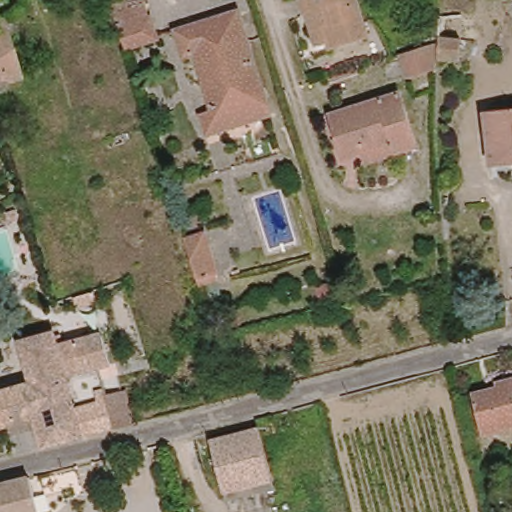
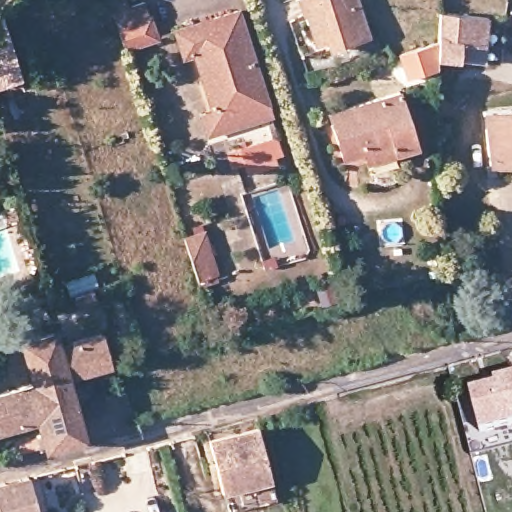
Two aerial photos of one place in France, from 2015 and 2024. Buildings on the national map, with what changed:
unchanged [(316,47),(306,17),(303,18),(297,0),(354,0),(366,38),(334,48),(328,51),(325,44),(316,47)]
demolished [(456,28),(455,11),(471,9),(470,28),(456,28)]
unchanged [(198,89),(204,88),(192,50),(177,54),(174,46),(169,31),(187,25),(236,10),(261,94),(264,103),(216,116),(208,119),(206,111),(198,89)]
new [(489,18),(486,46),(461,44),(459,62),(438,61),(437,69),(407,79),(399,55),(439,46),(441,13),(489,18)]
unchanged [(153,36),(123,45),(115,23),(147,15),(153,36)]
unchanged [(0,84),(0,23),(16,79),(0,84)]
demolished [(437,40),(459,42),(458,64),(436,61),(407,73),(398,46),(437,33),(437,40)]
unchanged [(412,150),(388,158),(384,146),(338,161),(324,114),(396,93),(412,150)]
unchanged [(509,173),(508,166),(507,156),(504,156),(501,157),(498,158),(494,158),(485,160),(477,114),(512,107),(512,172),(509,173)]
unchanged [(243,163),(239,146),(269,136),(274,153),(243,163)]
unchanged [(217,272),(196,279),(183,235),(202,229),(217,272)]
unchanged [(63,317),(56,301),(101,283),(106,300),(63,317)]
unchanged [(125,417),(36,441),(31,421),(0,429),(0,388),(31,380),(16,321),(54,309),(59,323),(93,315),(106,360),(143,350),(145,358),(93,373),(98,393),(116,389),(125,417)]
unchanged [(465,397),(498,389),(496,379),(512,375),(512,426),(476,436),(465,397)]
unchanged [(252,423),(268,420),(271,436),(256,440),(268,485),(217,498),(203,444),(229,437),(244,433),(253,431),(252,423)]
unchanged [(33,512),(0,512),(0,477),(21,471),(33,512)]

